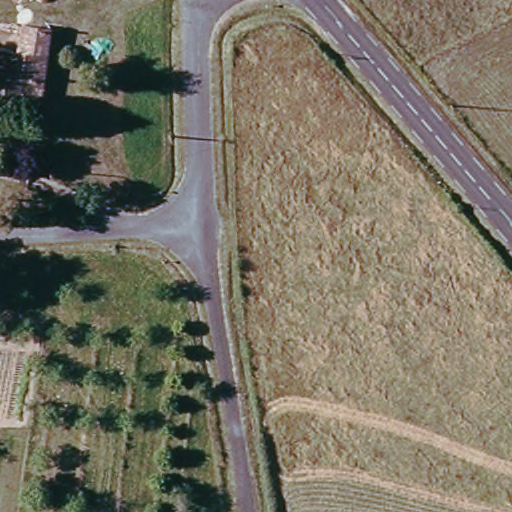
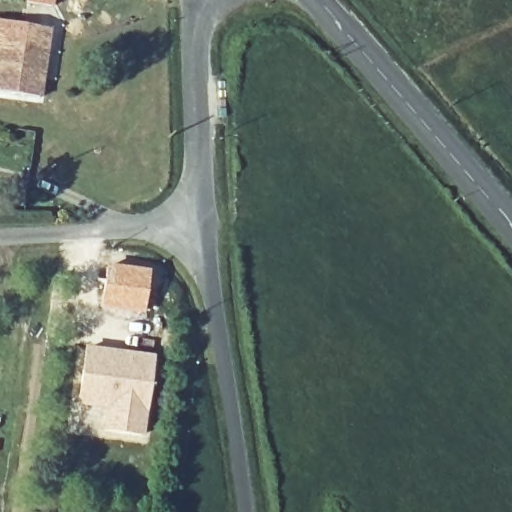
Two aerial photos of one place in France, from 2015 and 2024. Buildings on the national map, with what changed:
unchanged [(22,39),(27,24),(49,27),(40,99),(0,94),(0,47),(6,48),(9,38),(22,39)]
new [(105,266),(149,271),(144,315),(100,309),(105,266)]
new [(85,345),(155,354),(144,437),(76,426),(85,345)]

